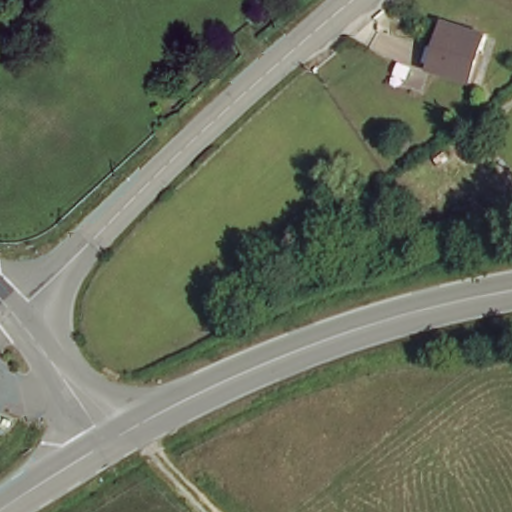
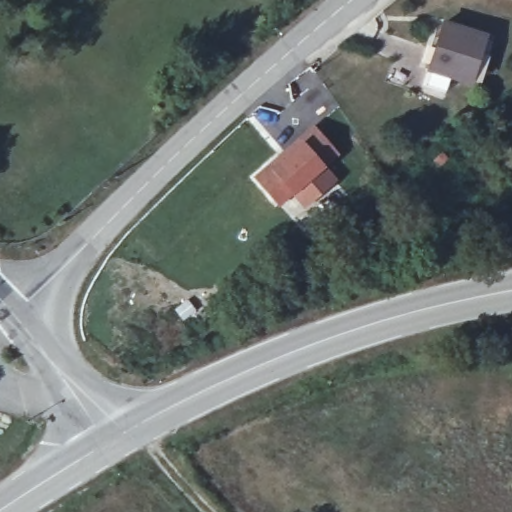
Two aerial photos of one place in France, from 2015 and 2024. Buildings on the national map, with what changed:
unchanged [(489,42),(462,85),(429,64),(455,20),(489,42)]
new [(272,164),(277,169),(312,139),(306,132),(319,121),(343,151),(330,165),(332,170),(283,210),(257,177),(272,164)]

